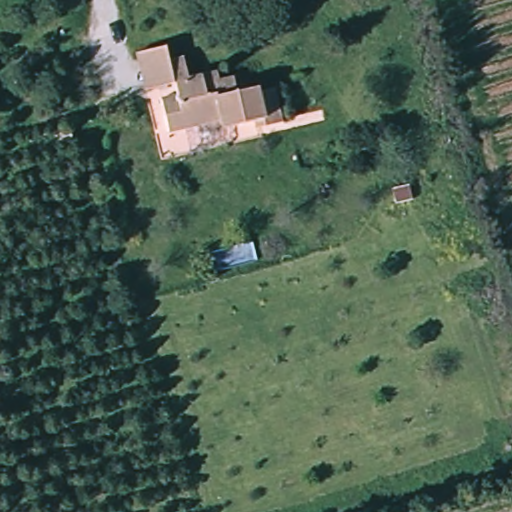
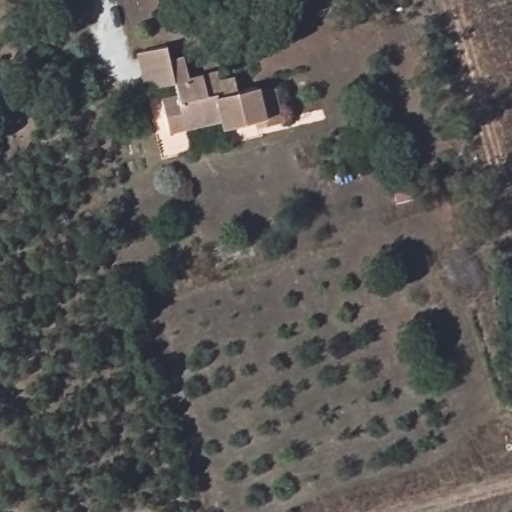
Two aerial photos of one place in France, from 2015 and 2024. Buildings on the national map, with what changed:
unchanged [(178,71),(151,78),(141,41),(171,34),(173,48),(178,71)]
unchanged [(188,45),(193,64),(223,57),(225,67),(238,64),(241,77),(263,73),(264,79),(280,75),(290,110),(263,116),(261,109),(228,116),(226,110),(176,122),(166,85),(180,81),(178,71),(173,48),(188,45)]

